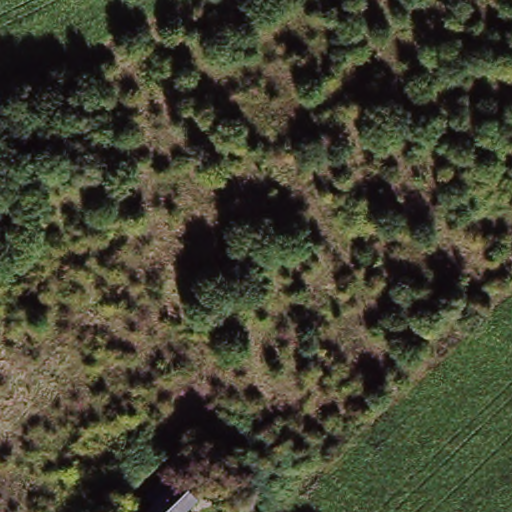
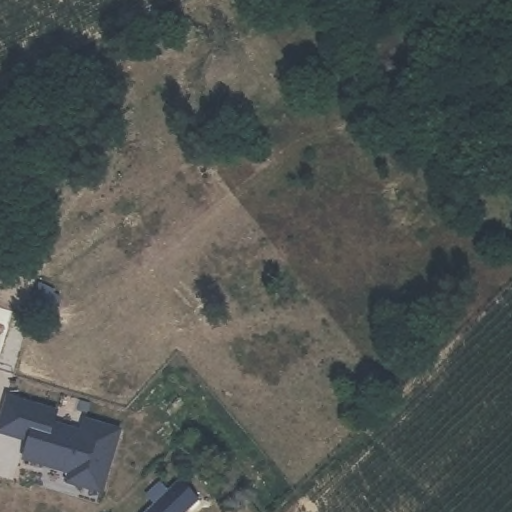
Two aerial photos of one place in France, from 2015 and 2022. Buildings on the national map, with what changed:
new [(61,410),(58,424),(80,430),(83,418),(121,429),(104,494),(64,483),(68,474),(22,460),(28,441),(0,434),(0,417),(5,395),(61,410)]
unchanged [(195,502),(185,512),(152,512),(141,501),(164,479),(176,490),(180,485),(195,502)]

